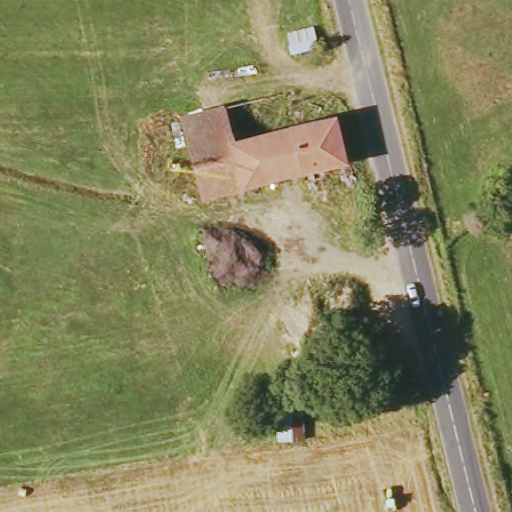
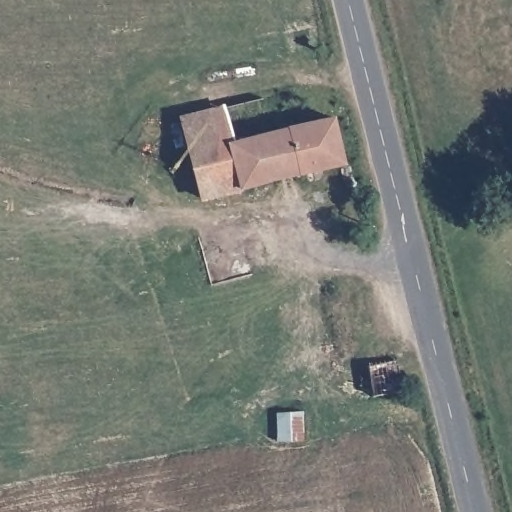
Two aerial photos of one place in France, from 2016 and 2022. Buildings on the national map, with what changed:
unchanged [(194,150),(186,116),(227,106),(235,140),(194,150)]
unchanged [(335,115),(348,161),(206,196),(194,150),(235,140),(335,115)]
unchanged [(392,368),(396,397),(367,402),(363,375),(392,368)]
unchanged [(301,441),(277,442),(276,416),(299,415),(301,441)]

